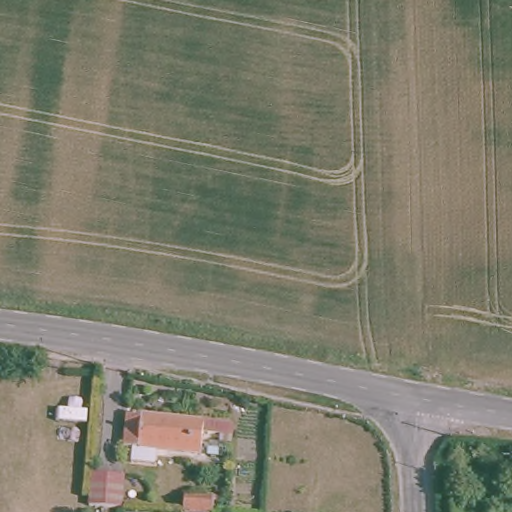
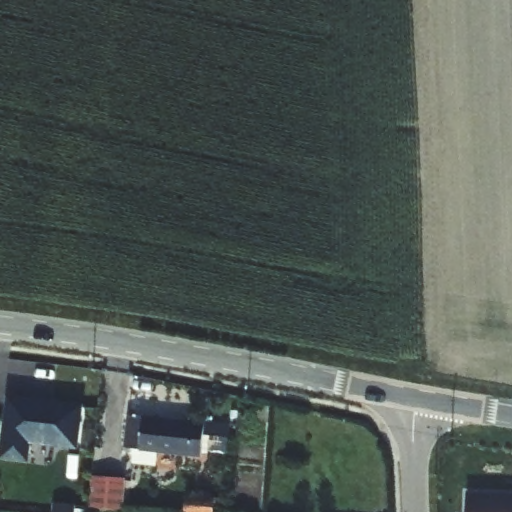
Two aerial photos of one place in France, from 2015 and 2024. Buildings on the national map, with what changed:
new [(30,443),(28,462),(0,458),(0,432),(2,400),(82,408),(78,448),(30,443)]
unchanged [(225,446),(215,445),(217,436),(200,435),(198,458),(122,449),(123,415),(228,425),(225,446)]
unchanged [(123,476),(122,505),(90,502),(93,473),(123,476)]
unchanged [(187,512),(188,493),(221,496),(219,512),(187,512)]
new [(512,495),(512,512),(464,512),(464,495),(512,495)]

